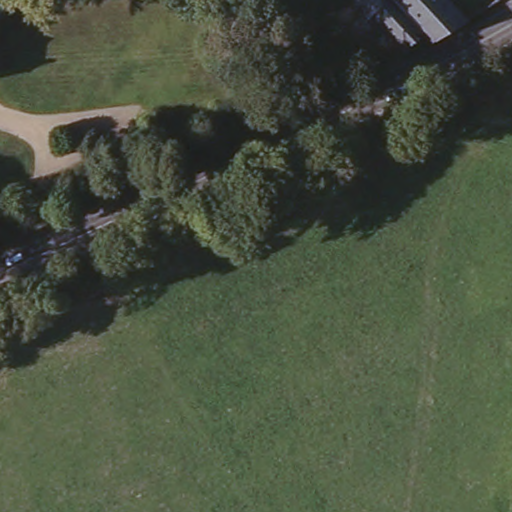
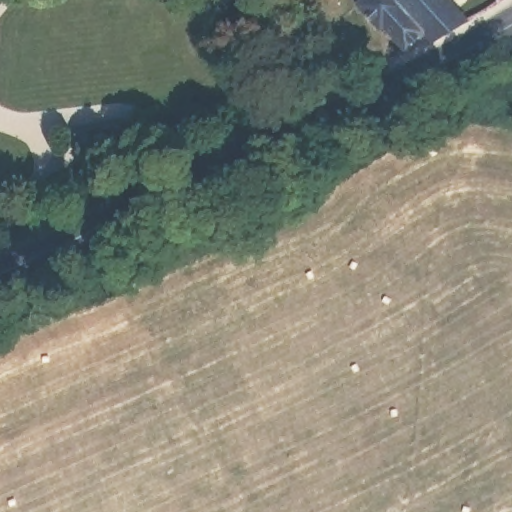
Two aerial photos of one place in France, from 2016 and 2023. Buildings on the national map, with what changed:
unchanged [(431,34),(424,25),(403,44),(380,18),(376,22),(357,0),(450,0),(463,14),(431,34)]

